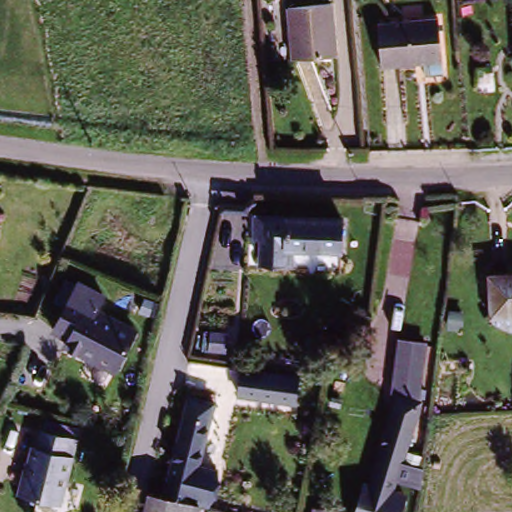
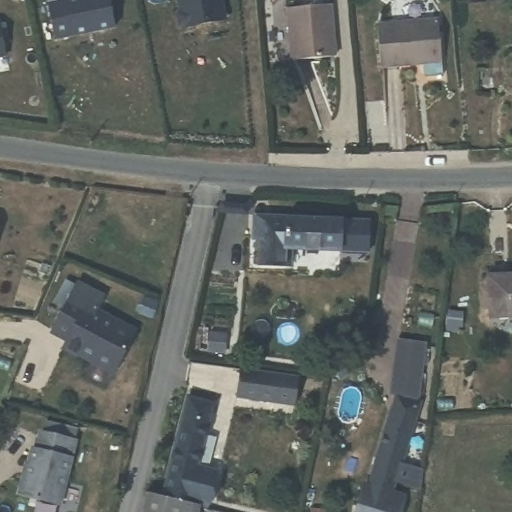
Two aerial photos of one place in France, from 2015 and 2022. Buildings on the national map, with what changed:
new [(58,35),(51,0),(113,0),(119,24),(58,35)]
new [(183,27),(179,24),(176,14),(179,9),(177,0),(219,0),(224,19),(183,27)]
unchanged [(284,3),(326,3),(327,58),(285,58),(284,3)]
unchanged [(423,75),(421,55),(412,55),(412,60),(380,61),(379,18),(437,16),(439,55),(440,74),(423,75)]
unchanged [(256,259),(257,241),(252,240),(254,226),(256,209),(273,211),(342,219),(339,249),(284,243),(282,261),(256,259)]
unchanged [(486,311),(488,271),(512,273),(512,313),(486,311)]
unchanged [(115,366),(67,339),(71,331),(57,323),(80,279),(107,294),(101,305),(137,328),(115,366)]
unchanged [(398,384),(407,334),(432,339),(424,396),(428,397),(410,461),(427,466),(424,484),(405,479),(396,512),(357,512),(366,484),(373,485),(400,393),(398,384)]
unchanged [(300,406),(247,393),(253,366),(306,379),(300,406)]
unchanged [(192,397),(217,403),(198,502),(172,497),(192,397)]
unchanged [(29,469),(33,472),(40,443),(46,444),(50,427),(83,435),(68,502),(23,493),(29,469)]
unchanged [(198,502),(209,505),(207,512),(155,512),(159,493),(172,497),(198,502)]

